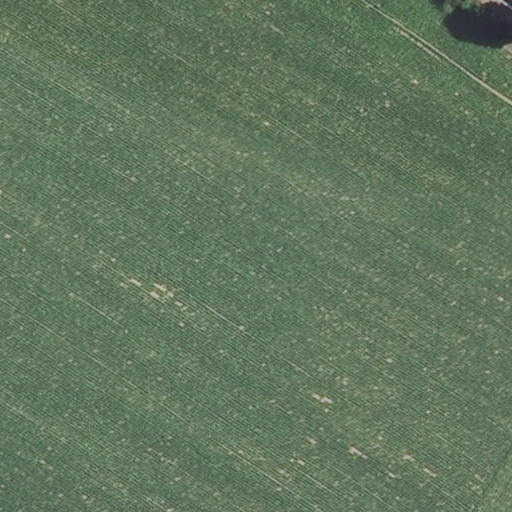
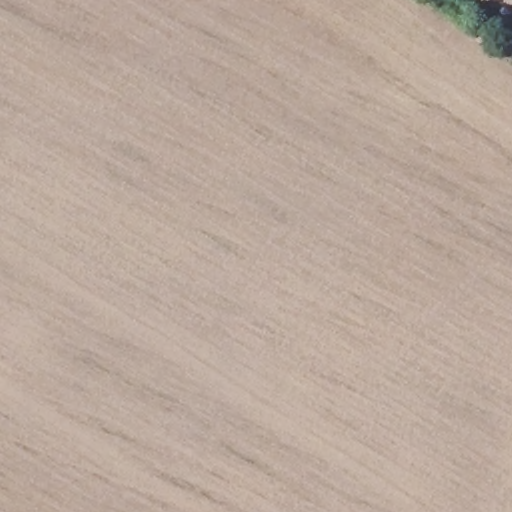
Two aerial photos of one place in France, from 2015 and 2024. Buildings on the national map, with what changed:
[]

